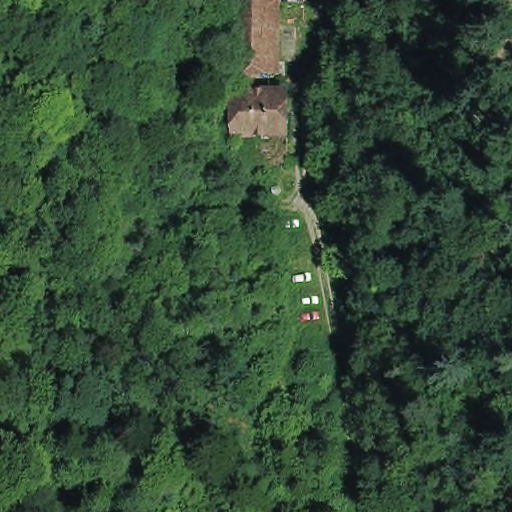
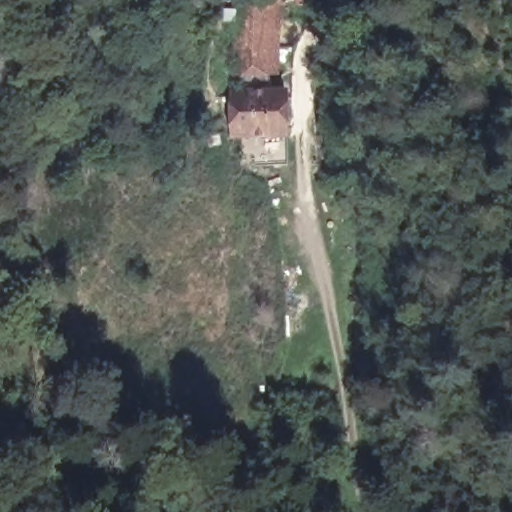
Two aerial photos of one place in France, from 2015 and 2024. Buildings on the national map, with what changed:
unchanged [(270,2),(271,80),(237,80),(235,2),(270,2)]
unchanged [(256,139),(231,140),(229,96),(285,94),(287,140),(286,166),(256,167),(256,139)]

